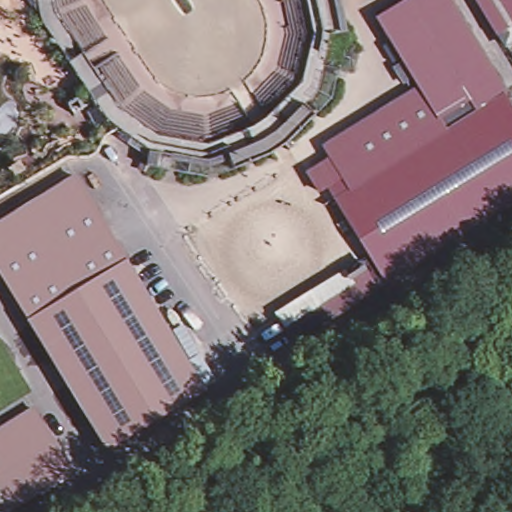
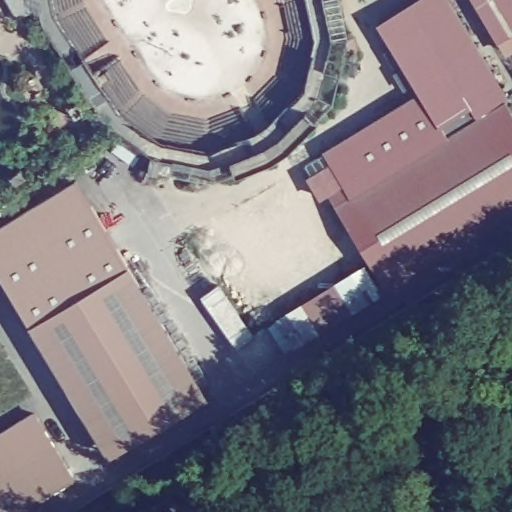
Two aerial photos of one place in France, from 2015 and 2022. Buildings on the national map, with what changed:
unchanged [(350,32),(335,99),(289,144),(292,149),(277,158),(274,153),(212,179),(152,170),(155,150),(125,130),(95,104),(44,21),(39,0),(57,0),(59,11),(77,40),(107,85),(125,109),(159,134),(215,143),(238,134),(272,115),(300,90),(312,60),(316,29),(310,0),(343,0),(350,32)]
unchanged [(408,0),(454,0),(512,91),(509,94),(352,190),(345,180),(330,190),(322,194),(309,173),(333,160),(327,147),(421,90),(377,17),(408,0)]
unchanged [(508,47),(478,0),(512,0),(512,46),(508,47)]
unchanged [(345,180),(352,190),(509,94),(512,100),(512,210),(386,289),(370,259),(330,190),(345,180)]
unchanged [(0,222),(78,175),(129,261),(208,393),(111,456),(30,322),(0,274),(0,222)]
unchanged [(386,289),(292,345),(284,329),(356,285),(349,271),(370,259),(386,289)]
unchanged [(275,313),(347,269),(349,271),(356,285),(284,329),(275,313)]
unchanged [(0,512),(0,429),(35,406),(76,475),(16,512),(0,512)]

